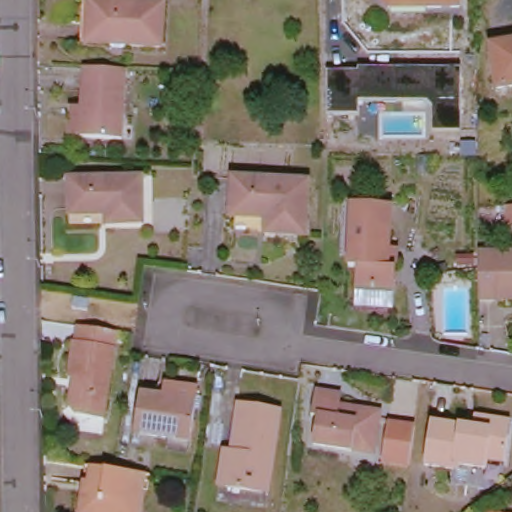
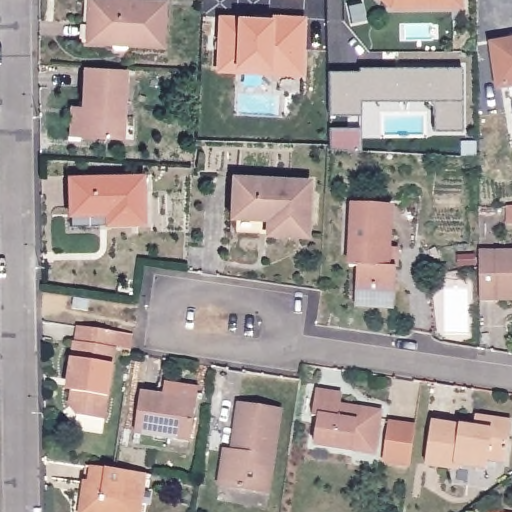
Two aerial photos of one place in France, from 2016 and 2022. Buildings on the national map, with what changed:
unchanged [(84,19),(85,0),(162,0),(162,28),(84,24),(84,19)]
unchanged [(381,0),(458,0),(458,7),(429,7),(390,9),(381,0)]
new [(298,67),(218,65),(219,17),(305,17),(298,67)]
unchanged [(162,28),(161,44),(83,40),(84,24),(162,28)]
unchanged [(492,49),(512,46),(512,89),(500,91),(492,49)]
unchanged [(327,71),(358,72),(358,67),(460,68),(461,134),(433,132),(433,107),(427,101),(359,101),(359,116),(327,116),(327,71)]
unchanged [(81,70),(125,71),(120,141),(78,140),(68,139),(69,109),(79,110),(81,70)]
unchanged [(264,231),(264,217),(229,214),(231,174),(306,179),(302,234),(264,231)]
unchanged [(105,215),(69,216),(68,181),(141,179),(143,225),(106,226),(105,215)]
unchanged [(395,262),(392,306),(354,304),(356,266),(349,265),(353,202),(391,205),(388,247),(396,248),(395,262)]
unchanged [(511,210),(512,210),(512,227),(512,226),(511,210)]
unchanged [(478,253),(512,253),(512,299),(478,300),(478,253)]
unchanged [(73,305),(74,295),(88,296),(87,306),(73,305)]
unchanged [(116,333),(104,422),(75,418),(70,409),(71,391),(75,392),(76,381),(68,380),(72,343),(74,344),(77,327),(116,333)]
unchanged [(139,395),(163,398),(164,386),(194,390),(192,402),(194,402),(188,442),(134,434),(139,395)]
unchanged [(322,416),(316,415),(319,389),(344,392),(342,403),(361,406),(362,410),(369,410),(371,407),(382,410),(377,447),(357,444),(355,450),(318,443),(322,416)]
unchanged [(222,448),(228,449),(235,403),(277,410),(264,491),(223,484),(216,482),(222,448)]
unchanged [(488,457),(486,468),(459,464),(458,467),(424,463),(431,421),(465,426),(465,430),(473,430),(476,415),(494,418),(511,420),(509,435),(505,460),(488,457)]
unchanged [(391,420),(419,423),(414,456),(413,462),(385,458),(391,420)]
unchanged [(147,476),(141,512),(83,512),(87,491),(92,492),(93,486),(87,485),(90,467),(117,471),(147,476)]

